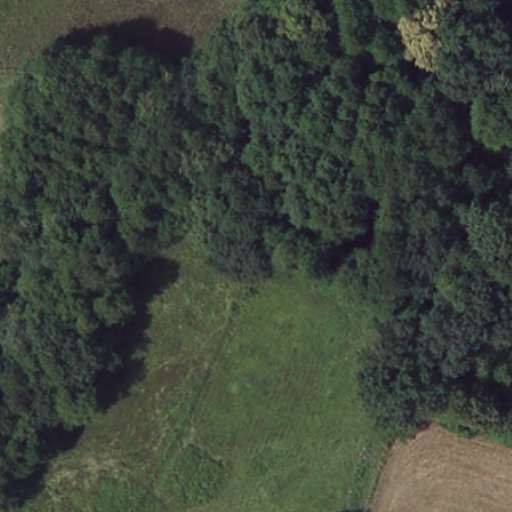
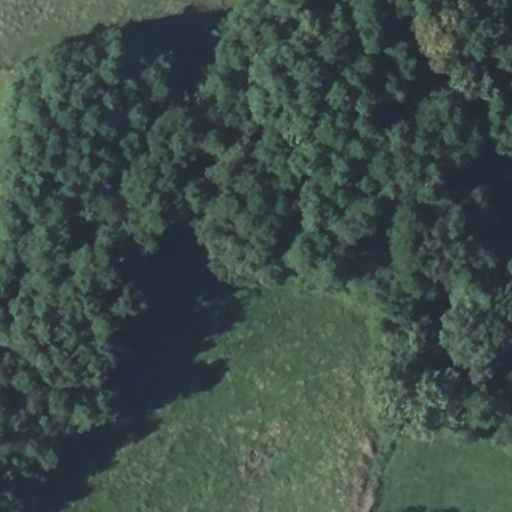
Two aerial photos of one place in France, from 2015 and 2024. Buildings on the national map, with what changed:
[]

